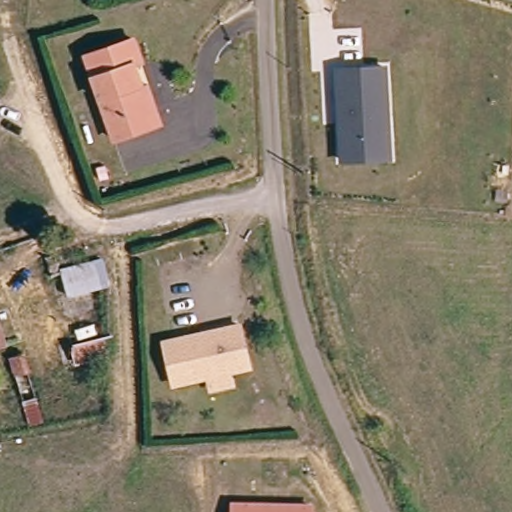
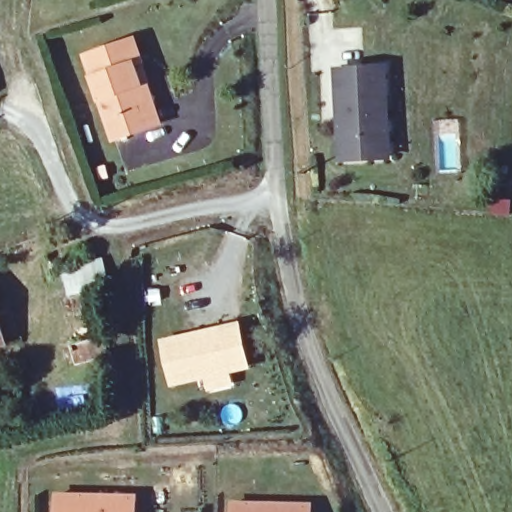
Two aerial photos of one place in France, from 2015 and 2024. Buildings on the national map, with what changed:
unchanged [(148,126),(115,137),(87,56),(133,41),(140,66),(129,70),(135,90),(148,85),(161,122),(148,126)]
unchanged [(335,68),(387,64),(391,160),(338,162),(335,68)]
unchanged [(106,253),(115,250),(133,304),(111,310),(117,331),(107,333),(80,341),(57,266),(106,253)]
unchanged [(5,334),(0,336),(0,318),(5,334)]
unchanged [(223,386),(218,373),(184,382),(172,340),(246,318),(260,361),(240,367),(243,381),(223,386)]
new [(135,500),(135,512),(57,512),(57,497),(135,500)]
unchanged [(233,512),(233,500),(316,499),(316,512),(233,512)]

